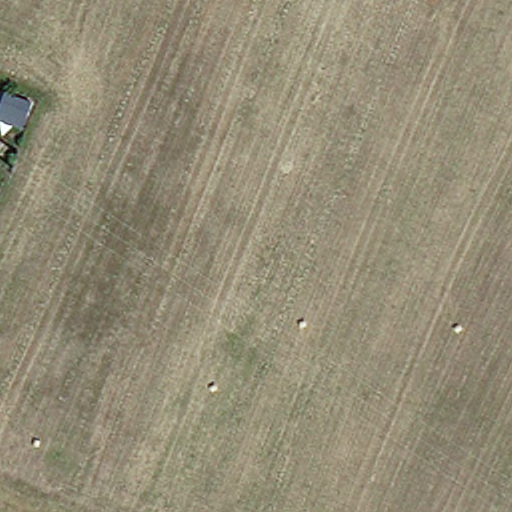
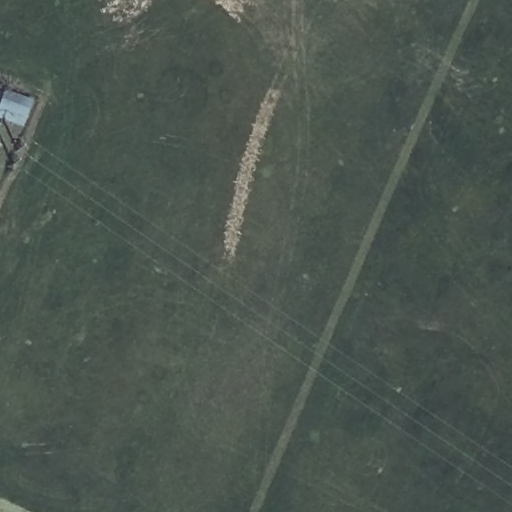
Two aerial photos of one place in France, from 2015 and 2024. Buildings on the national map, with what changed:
[]

